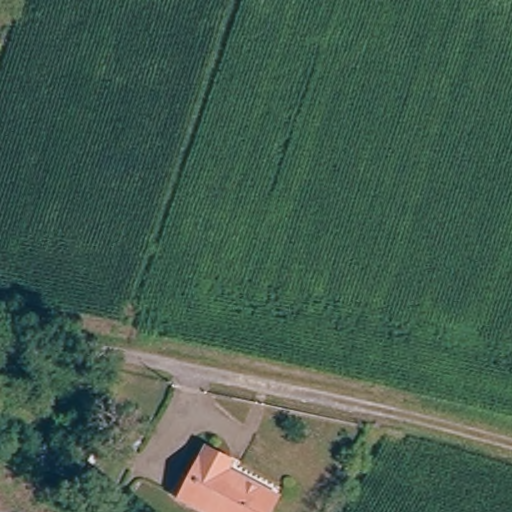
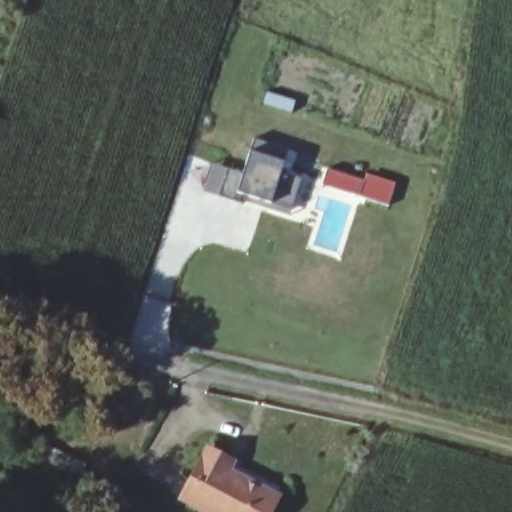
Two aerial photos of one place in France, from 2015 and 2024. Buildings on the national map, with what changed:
new [(244,169),(249,151),(254,137),(287,148),(283,160),(280,169),(302,175),(290,211),(270,202),(242,193),(238,202),(204,191),(213,162),(244,169)]
new [(364,179),(366,172),(396,181),(389,204),(323,183),(328,168),(364,179)]
unchanged [(227,472),(275,497),(268,512),(208,512),(183,499),(207,451),(231,463),(227,472)]

